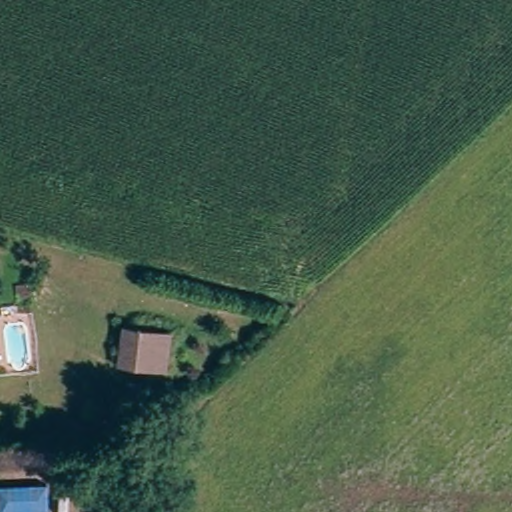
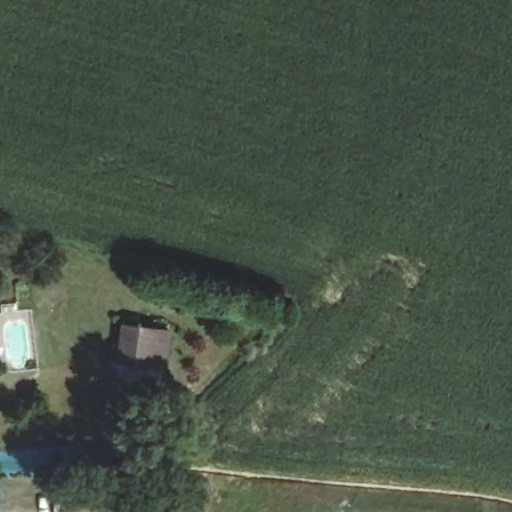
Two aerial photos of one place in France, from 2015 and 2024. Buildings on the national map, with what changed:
unchanged [(167,371),(153,369),(125,366),(128,327),(160,330),(169,331),(167,371)]

